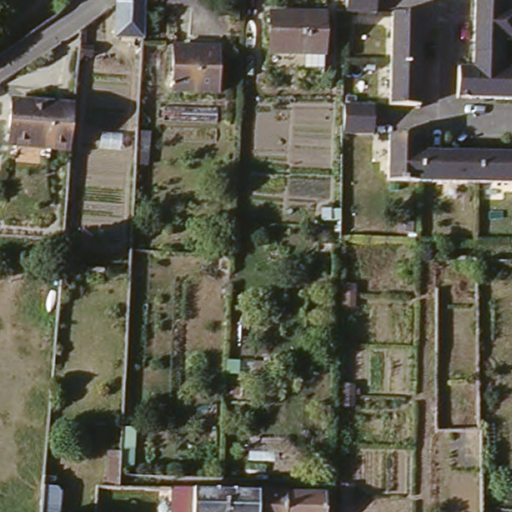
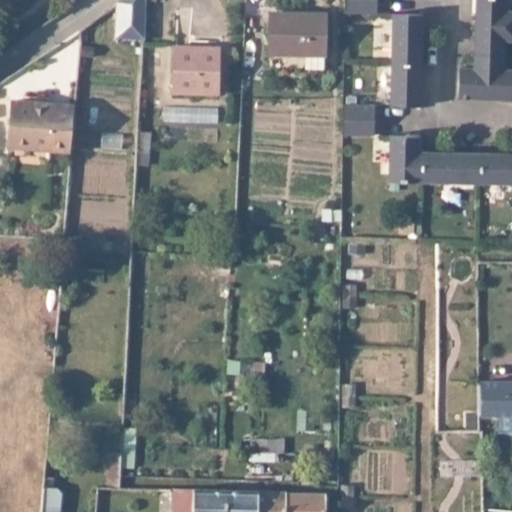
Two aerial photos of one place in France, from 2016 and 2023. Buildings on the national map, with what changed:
unchanged [(121,0),(145,0),(142,41),(114,39),(116,4),(121,0)]
unchanged [(373,11),(343,10),(343,0),(374,0),(373,11)]
unchanged [(460,98),(460,68),(475,68),(476,0),(505,0),(505,8),(512,8),(512,40),(506,39),(505,68),(512,68),(512,100),(460,98)]
unchanged [(424,12),(422,103),(392,103),(393,59),(395,11),(424,12)]
unchanged [(297,16),(297,14),(327,15),(326,55),(270,53),(270,16),(297,16)]
unchanged [(216,45),(214,91),(171,89),(172,44),(216,45)]
unchanged [(13,99),(74,104),(70,147),(10,142),(13,99)]
unchanged [(371,103),(371,133),(341,132),(342,102),(371,103)]
unchanged [(472,181),(413,180),(385,179),(386,133),(416,135),(416,149),(512,152),(512,182),(472,181)]
unchanged [(107,288),(92,287),(92,275),(108,276),(107,288)]
new [(481,381),(512,380),(512,416),(481,416),(481,381)]
unchanged [(125,465),(124,487),(124,491),(109,491),(111,464),(125,465)]
unchanged [(51,477),(51,488),(55,488),(61,493),(59,512),(39,512),(42,476),(51,477)]
unchanged [(234,489),(234,512),(180,512),(180,489),(234,489)]
unchanged [(266,512),(234,512),(234,489),(266,490),(266,512)]
unchanged [(294,490),(296,492),(333,493),(333,512),(266,512),(266,490),(294,490)]

